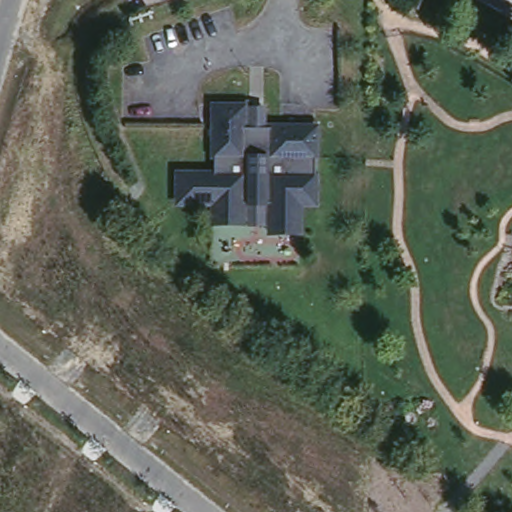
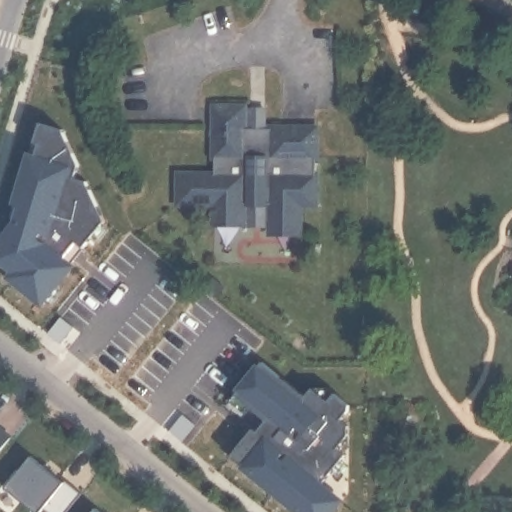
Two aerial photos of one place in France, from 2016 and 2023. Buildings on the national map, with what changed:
unchanged [(316,125),(316,206),(302,207),(303,236),(269,235),(268,225),(211,226),(210,202),(175,203),(175,168),(210,167),(209,105),(249,101),(251,125),(267,125),(316,125)]
new [(20,209),(15,206),(29,155),(36,157),(41,145),(37,140),(41,126),(64,131),(77,169),(72,180),(86,185),(105,226),(72,268),(42,307),(14,284),(20,278),(0,263),(0,255),(5,238),(15,225),(20,209)]
new [(240,471),(244,468),(231,457),(252,432),(256,436),(271,418),(235,391),(258,361),(304,401),(312,391),(327,403),(333,396),(345,406),(337,418),(345,426),(346,434),(333,451),(340,459),(323,481),(347,504),(341,512),(289,512),(240,471)]
new [(10,435),(0,448),(0,426),(10,435)]
new [(81,490),(63,512),(58,512),(44,501),(40,506),(8,480),(32,452),(81,490)]
new [(106,512),(90,512),(96,504),(106,512)]

